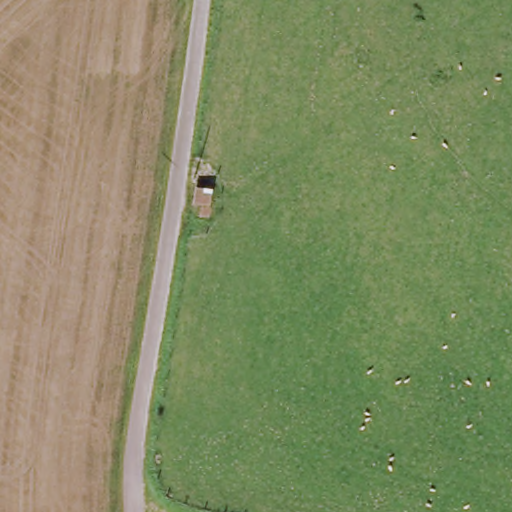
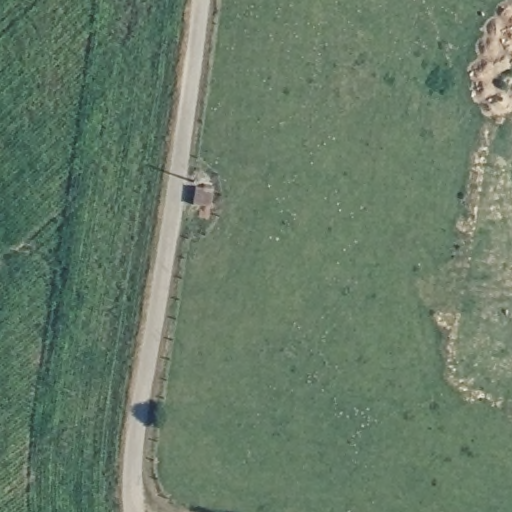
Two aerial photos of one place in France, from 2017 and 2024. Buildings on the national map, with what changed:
unchanged [(194,189),(202,190),(203,185),(212,186),(209,209),(210,209),(210,219),(199,217),(201,205),(192,203),(194,189)]

